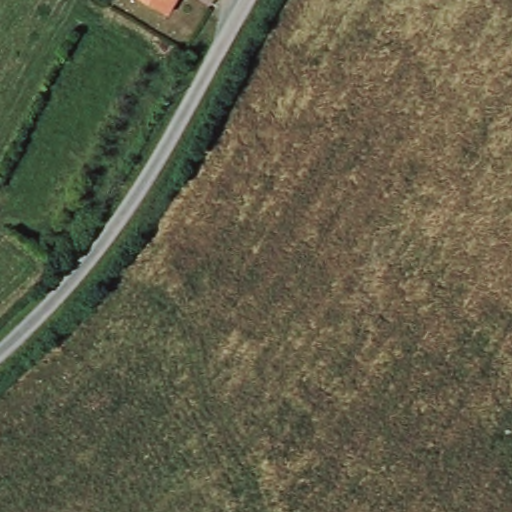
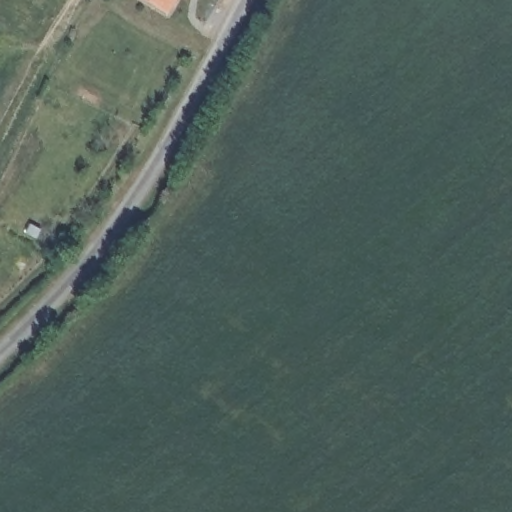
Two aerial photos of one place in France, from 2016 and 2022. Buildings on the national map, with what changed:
unchanged [(163,17),(135,0),(174,0),(163,17)]

